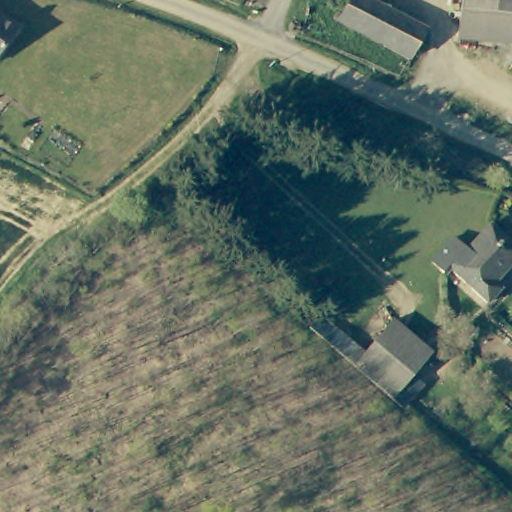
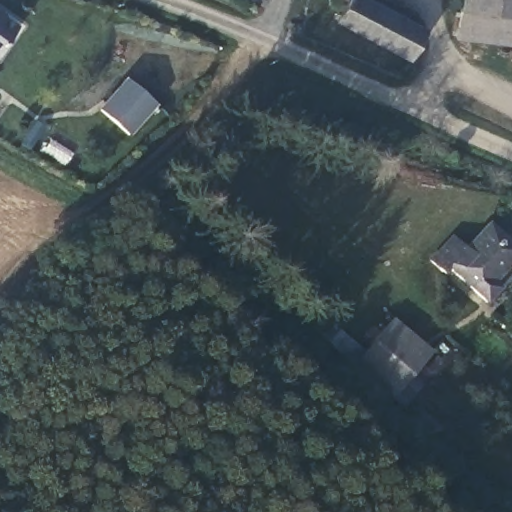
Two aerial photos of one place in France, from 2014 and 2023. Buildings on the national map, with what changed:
unchanged [(406,63),(335,26),(342,14),(331,12),(328,5),(330,0),(360,0),(367,4),(422,33),(406,63)]
unchanged [(460,14),(461,0),(512,0),(512,20),(460,14)]
unchanged [(457,42),(460,14),(512,20),(512,50),(457,42)]
unchanged [(0,22),(13,32),(0,51),(0,22)]
new [(129,138),(97,110),(126,78),(157,106),(129,138)]
unchanged [(449,241),(465,256),(489,231),(512,254),(512,266),(491,289),(496,295),(484,307),(449,273),(441,278),(428,264),(449,241)]
unchanged [(406,377),(419,387),(399,409),(310,334),(323,320),(360,357),(389,324),(425,355),(406,377)]

